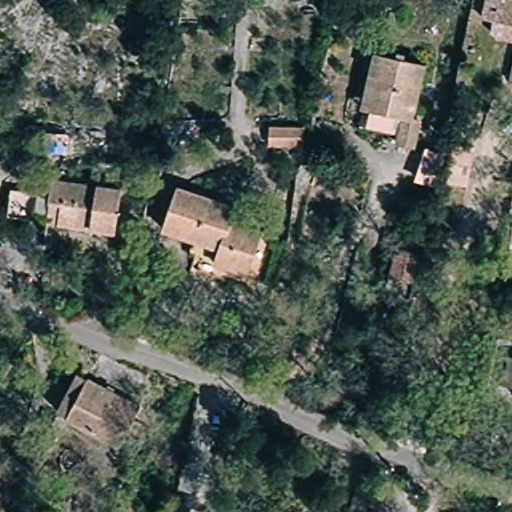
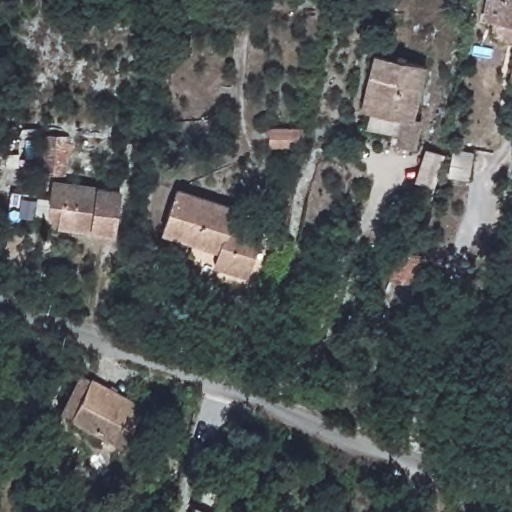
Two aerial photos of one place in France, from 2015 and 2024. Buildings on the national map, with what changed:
unchanged [(512,0),(512,29),(500,26),(506,0),(512,0)]
unchanged [(423,64),(411,118),(419,120),(414,147),(394,142),(401,117),(368,108),(359,106),(366,72),(371,52),(423,64)]
unchanged [(508,86),(512,67),(512,88),(508,86)]
unchanged [(70,151),(43,148),(44,128),(73,130),(70,151)]
unchanged [(271,128),(302,130),(301,147),(269,145),(271,128)]
unchanged [(445,185),(444,191),(415,183),(426,149),(451,156),(454,144),(475,151),(467,186),(445,185)]
unchanged [(54,204),(57,184),(124,194),(118,236),(63,228),(51,226),(54,204)]
unchanged [(239,213),(234,226),(264,238),(248,280),(194,260),(201,245),(169,233),(184,193),(239,213)]
unchanged [(393,278),(399,250),(424,256),(418,283),(393,278)]
unchanged [(508,381),(512,366),(512,382),(508,381)]
unchanged [(129,406),(141,413),(123,449),(57,415),(76,379),(108,395),(129,406)]
unchanged [(46,432),(64,445),(50,463),(33,449),(46,432)]

